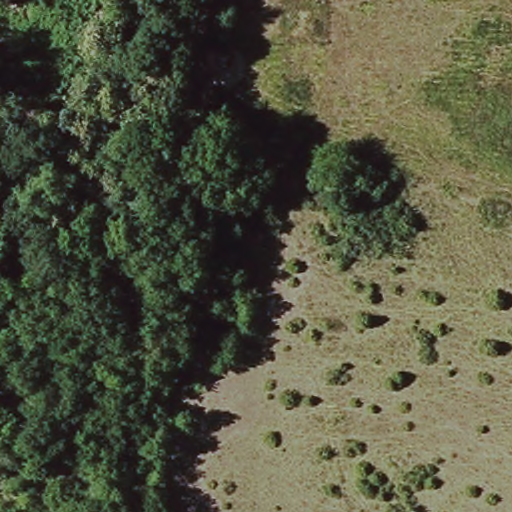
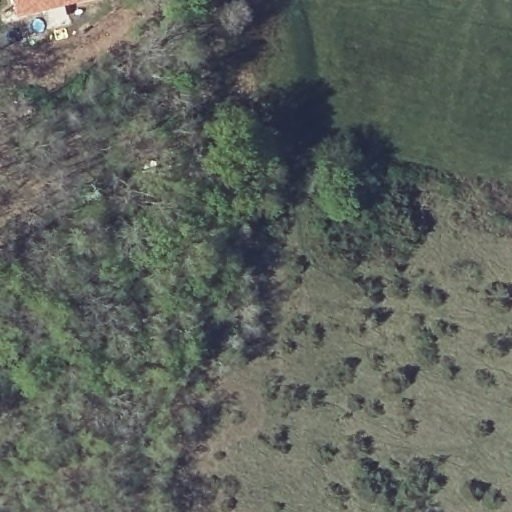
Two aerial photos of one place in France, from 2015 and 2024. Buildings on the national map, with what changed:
new [(12,0),(92,0),(16,16),(12,0)]

